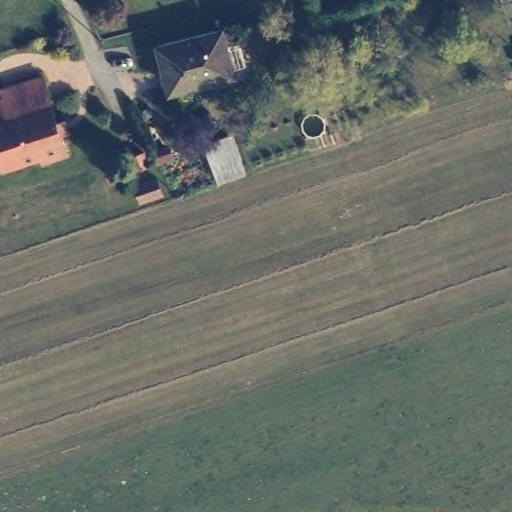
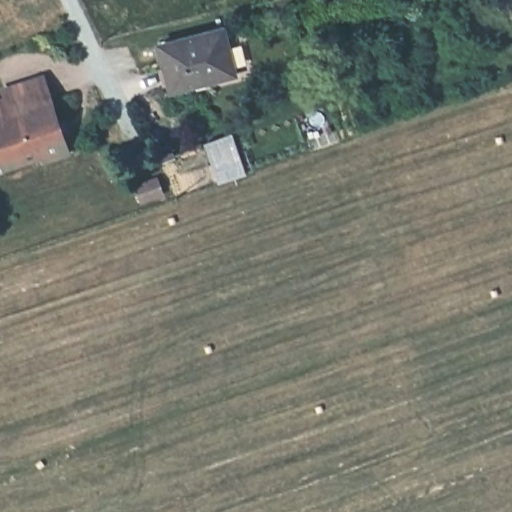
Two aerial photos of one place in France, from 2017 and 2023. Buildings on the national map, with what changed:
unchanged [(221,26),(231,70),(169,84),(158,39),(221,26)]
unchanged [(55,112),(60,111),(64,123),(59,125),(65,144),(43,151),(39,144),(1,156),(0,152),(0,84),(40,70),(55,112)]

